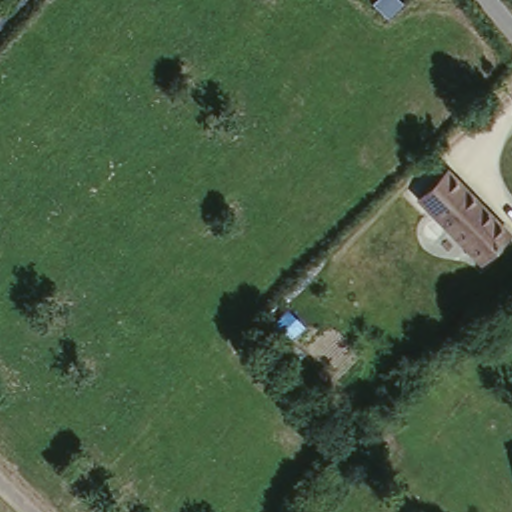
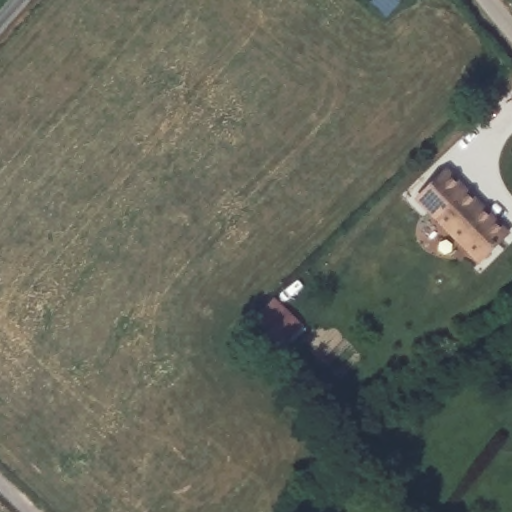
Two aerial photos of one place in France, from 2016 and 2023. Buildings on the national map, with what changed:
unchanged [(381,8),(371,0),(388,0),(381,8)]
unchanged [(450,164),(510,220),(483,247),(423,190),(450,164)]

